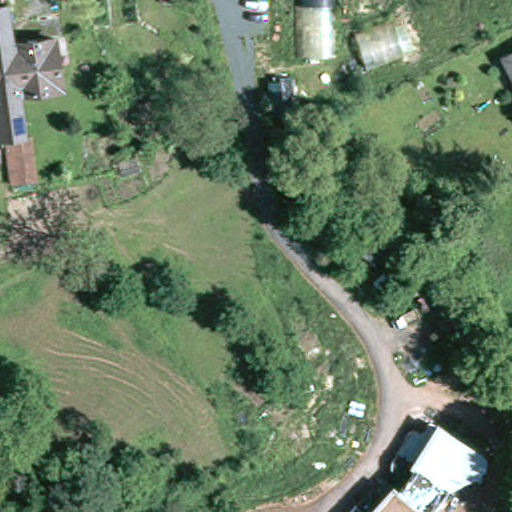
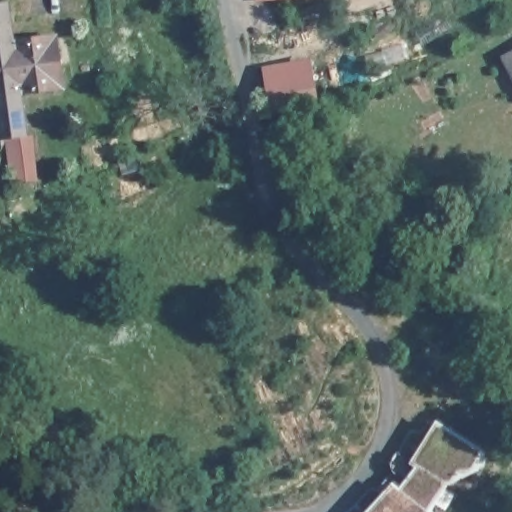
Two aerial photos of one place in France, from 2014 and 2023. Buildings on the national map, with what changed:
unchanged [(12,40),(56,35),(61,85),(20,90),(25,134),(18,135),(24,180),(10,182),(5,137),(0,138),(0,2),(7,1),(12,40)]
new [(309,59),(315,88),(276,96),(270,67),(309,59)]
unchanged [(510,62),(512,61),(512,66),(510,62)]
unchanged [(391,467),(390,457),(411,427),(435,419),(486,448),(487,458),(485,465),(461,481),(448,488),(434,512),(431,512),(394,483),(404,471),(391,467)]
unchanged [(366,512),(394,483),(431,512),(366,512)]

